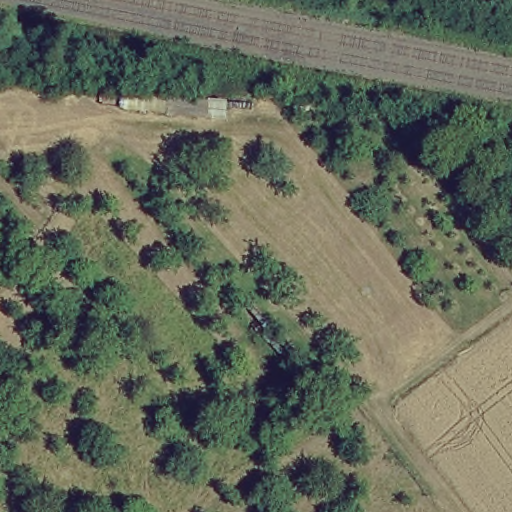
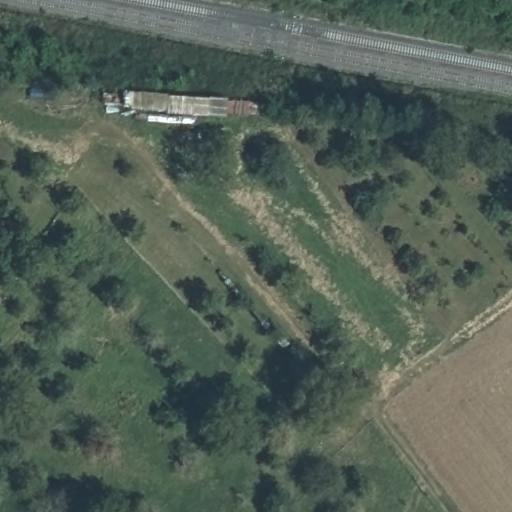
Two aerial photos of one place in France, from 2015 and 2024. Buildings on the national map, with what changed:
unchanged [(140,116),(60,111),(61,93),(141,98),(140,116)]
unchanged [(212,123),(167,122),(169,99),(214,100),(212,123)]

